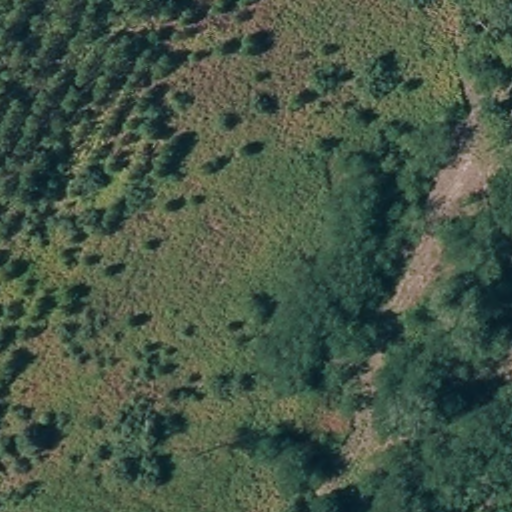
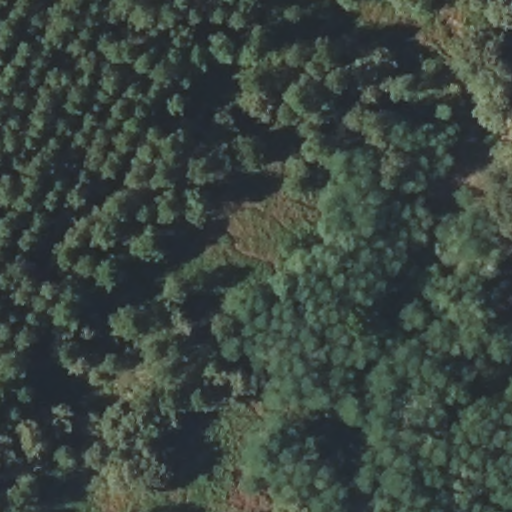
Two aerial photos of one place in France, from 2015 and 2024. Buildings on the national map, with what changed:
[]

